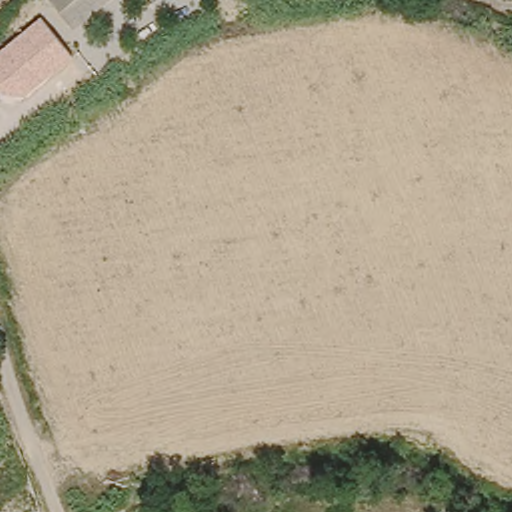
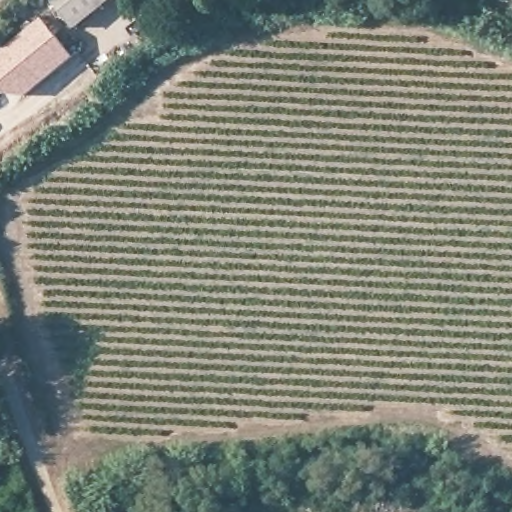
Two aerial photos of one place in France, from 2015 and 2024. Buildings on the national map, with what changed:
unchanged [(53,0),(110,0),(76,28),(53,0)]
unchanged [(0,92),(0,50),(42,15),(73,56),(23,97),(0,92)]

